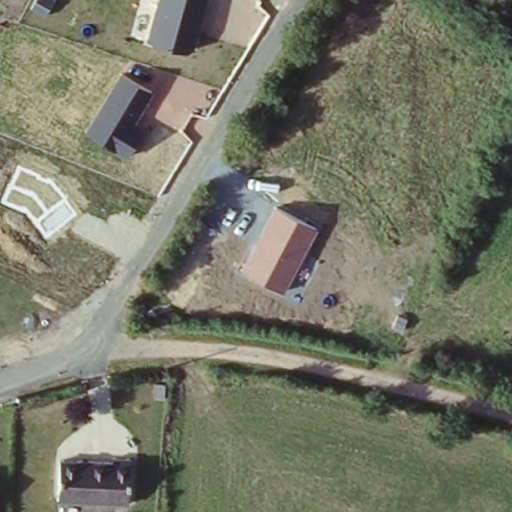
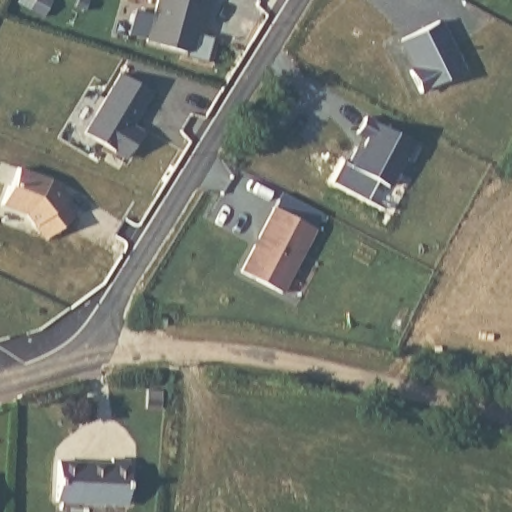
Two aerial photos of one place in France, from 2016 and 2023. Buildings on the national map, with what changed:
unchanged [(158,0),(205,0),(190,52),(147,39),(158,0)]
new [(440,24),(464,73),(421,94),(411,73),(418,70),(404,40),(440,24)]
unchanged [(84,132),(119,71),(151,90),(131,128),(141,134),(127,157),(84,132)]
new [(359,151),(363,154),(369,142),(358,136),(366,120),(419,149),(411,163),(404,160),(389,190),(349,169),(359,151)]
new [(10,186),(12,187),(19,169),(51,181),(67,201),(66,202),(76,216),(47,239),(27,215),(3,204),(10,186)]
unchanged [(274,205),(316,229),(283,292),(241,270),(274,205)]
unchanged [(108,468),(108,462),(125,462),(122,506),(56,505),(58,465),(108,468)]

